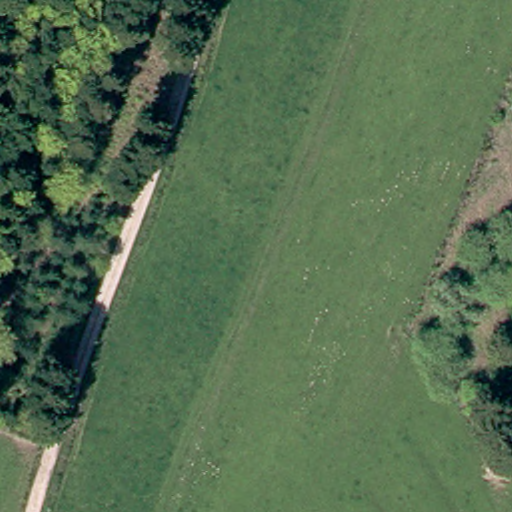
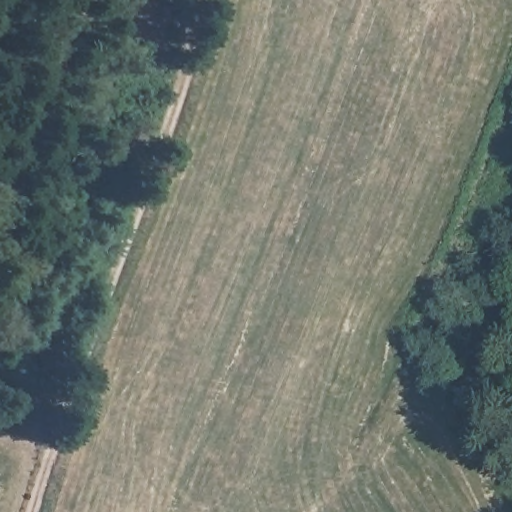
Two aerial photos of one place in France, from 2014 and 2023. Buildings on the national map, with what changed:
[]

